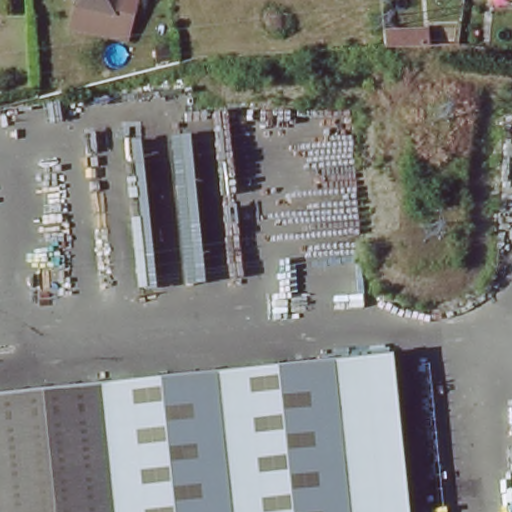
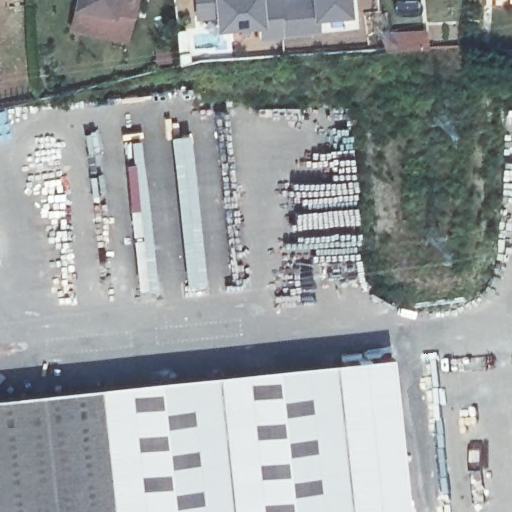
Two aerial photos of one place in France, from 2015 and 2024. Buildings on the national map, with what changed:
unchanged [(72,12),(75,0),(130,0),(127,21),(72,12)]
new [(213,28),(212,17),(195,19),(193,0),(261,0),(261,25),(213,28)]
new [(310,0),(313,18),(316,18),(315,34),(262,39),(261,25),(261,0),(310,0)]
new [(316,18),(313,18),(310,0),(350,0),(351,15),(316,18)]
unchanged [(425,29),(425,44),(386,45),(386,29),(425,29)]
unchanged [(205,281),(183,283),(170,136),(190,135),(205,281)]
unchanged [(156,287),(137,290),(126,179),(135,177),(132,140),(142,140),(156,287)]
unchanged [(141,382),(391,360),(405,512),(0,512),(0,395),(141,382)]

